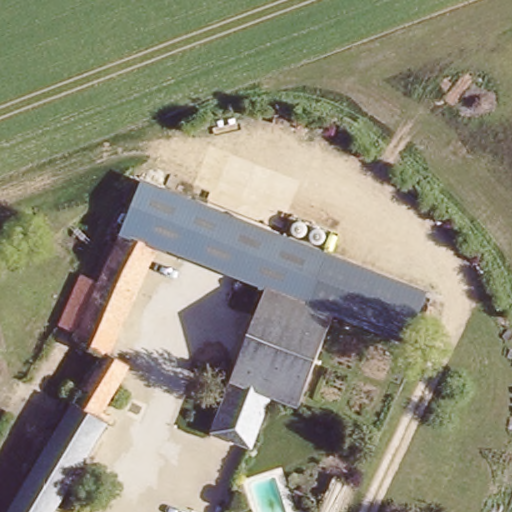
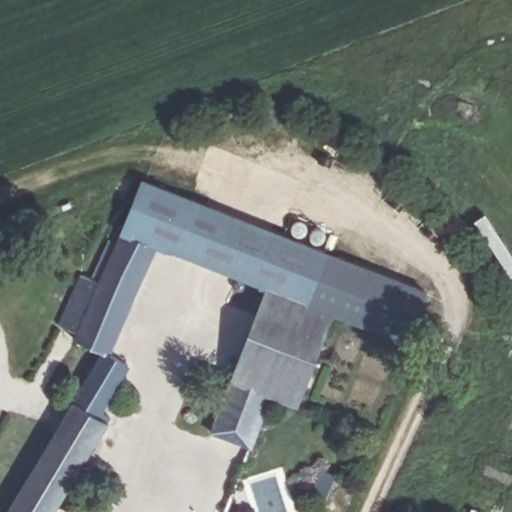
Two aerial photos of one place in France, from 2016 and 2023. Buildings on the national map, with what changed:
unchanged [(140,177),(319,248),(299,299),(262,285),(151,243),(116,229),(140,177)]
unchanged [(68,334),(71,329),(93,277),(116,229),(151,243),(106,347),(104,351),(97,348),(68,334)]
unchanged [(319,248),(420,288),(401,337),(328,310),(299,299),(319,248)]
unchanged [(76,269),(93,277),(71,329),(55,320),(76,269)]
unchanged [(311,354),(310,359),(292,403),(266,393),(226,378),(262,285),(299,299),(328,310),(311,354)]
unchanged [(125,358),(96,406),(106,413),(45,512),(0,512),(0,510),(97,348),(104,351),(106,347),(125,358)]
unchanged [(226,378),(266,393),(248,439),(246,443),(207,429),(209,424),(226,378)]

